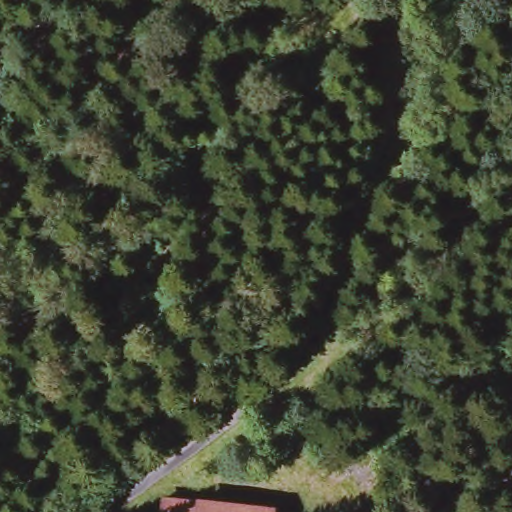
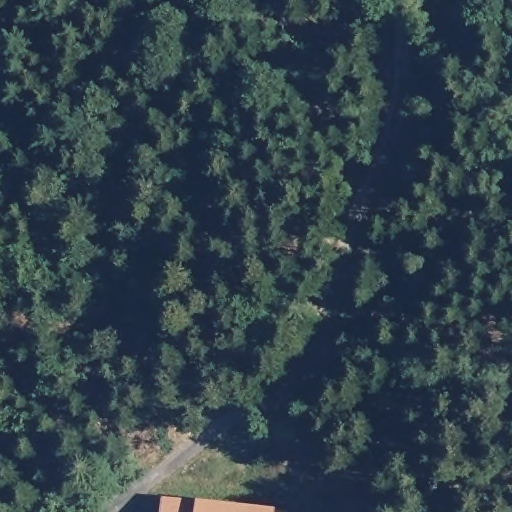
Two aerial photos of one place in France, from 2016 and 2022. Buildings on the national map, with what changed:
unchanged [(157,503),(268,510),(268,512),(157,512),(157,503)]

